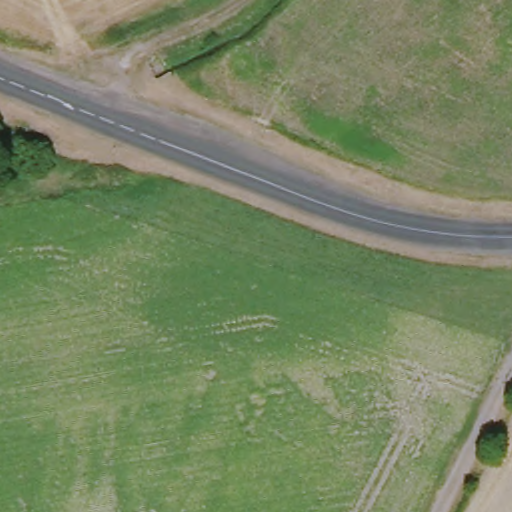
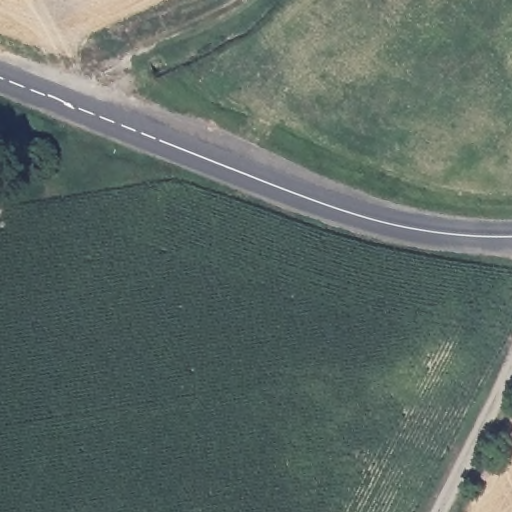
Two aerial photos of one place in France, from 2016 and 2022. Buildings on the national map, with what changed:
[]

